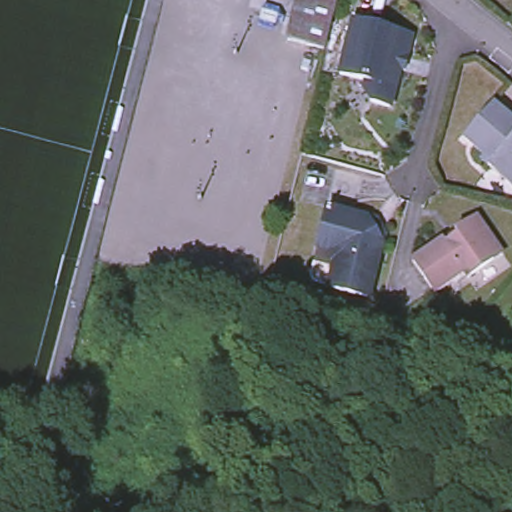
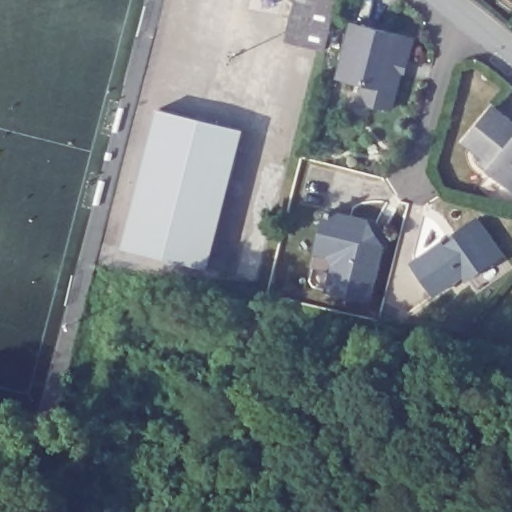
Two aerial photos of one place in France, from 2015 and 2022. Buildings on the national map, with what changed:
unchanged [(325,49),(287,39),(298,0),(338,0),(325,49)]
unchanged [(404,67),(390,103),(375,97),(363,86),(365,79),(341,69),(360,19),(415,41),(417,47),(415,55),(409,69),(404,67)]
new [(158,108),(242,129),(209,268),(123,246),(158,108)]
unchanged [(500,112),(512,122),(512,189),(490,169),(493,165),(471,147),(500,112)]
unchanged [(376,303),(336,293),(342,268),(338,259),(325,255),(336,215),(373,224),(380,233),(385,241),(389,246),(376,303)]
unchanged [(505,255),(472,279),(468,274),(438,296),(415,265),(445,243),(456,234),(478,218),(505,255)]

